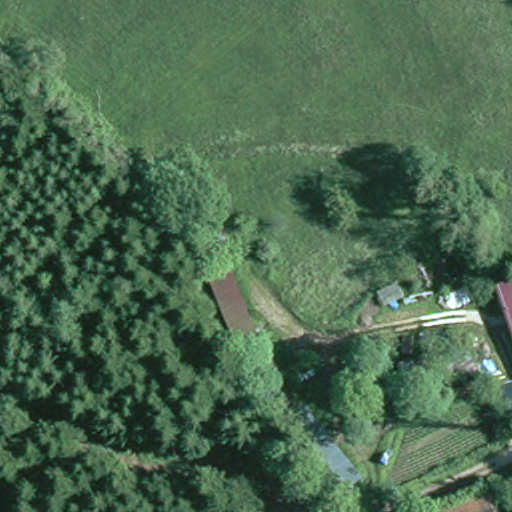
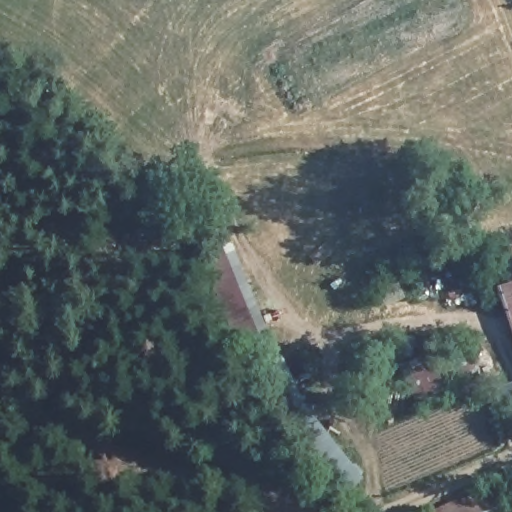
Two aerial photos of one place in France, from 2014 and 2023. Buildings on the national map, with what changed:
unchanged [(512,288),(512,320),(502,292),(512,288)]
unchanged [(502,489),(478,503),(482,512),(425,512),(423,508),(494,472),(502,489)]

